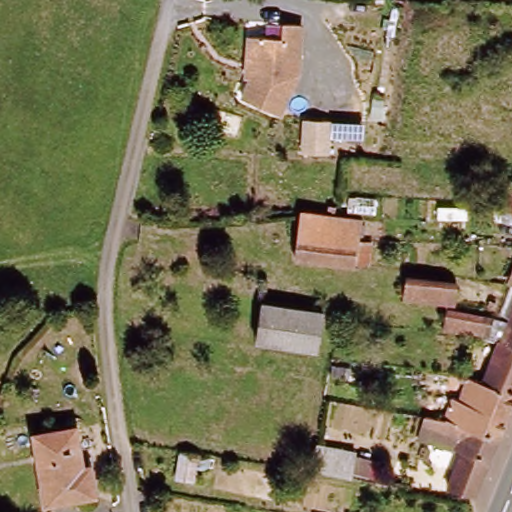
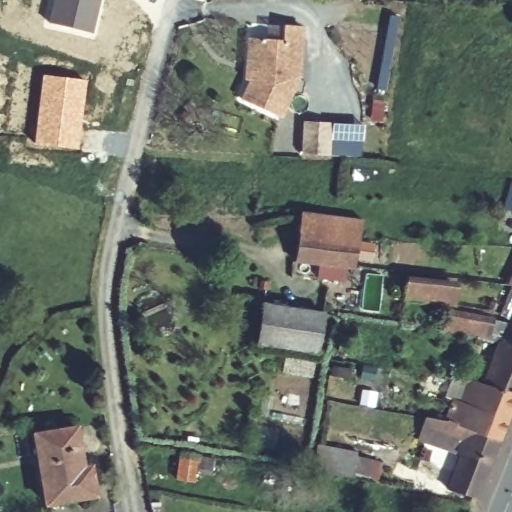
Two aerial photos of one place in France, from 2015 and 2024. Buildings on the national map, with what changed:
new [(100,0),(92,34),(46,21),(52,0),(100,0)]
unchanged [(247,68),(249,41),(267,43),(268,29),(282,30),(282,29),(302,29),(298,79),(279,119),(242,103),(251,83),(246,83),(247,68)]
new [(41,73),(87,79),(81,149),(32,144),(41,73)]
demolished [(328,156),(304,155),(305,129),(306,123),(330,124),(328,156)]
new [(328,156),(304,155),(305,129),(306,123),(330,124),(364,125),(362,158),(328,156)]
unchanged [(497,237),(504,209),(511,185),(512,185),(512,240),(512,241),(497,237)]
unchanged [(356,268),(356,271),(299,264),(303,215),(360,223),(358,244),(358,247),(370,248),(369,266),(356,265),(356,268)]
unchanged [(512,277),(512,290),(507,289),(512,277)]
unchanged [(406,298),(410,278),(463,287),(460,304),(406,298)]
unchanged [(484,379),(496,344),(506,322),(512,307),(512,396),(467,382),(472,374),(484,379)]
unchanged [(257,345),(262,309),(320,317),(315,352),(257,345)]
unchanged [(444,327),(448,309),(493,319),(490,333),(444,327)]
new [(428,374),(454,378),(449,399),(425,395),(428,374)]
unchanged [(452,399),(459,402),(467,382),(512,396),(512,407),(498,444),(443,423),(452,399)]
unchanged [(488,468),(459,456),(453,453),(457,444),(426,430),(431,418),(443,423),(498,444),(488,468)]
unchanged [(49,504),(36,436),(77,428),(84,464),(92,463),(98,494),(49,504)]
unchanged [(313,469),(318,443),(358,451),(352,477),(313,469)]
unchanged [(178,483),(182,455),(202,458),(197,486),(178,483)]
unchanged [(446,492),(459,456),(488,468),(474,502),(446,492)]

